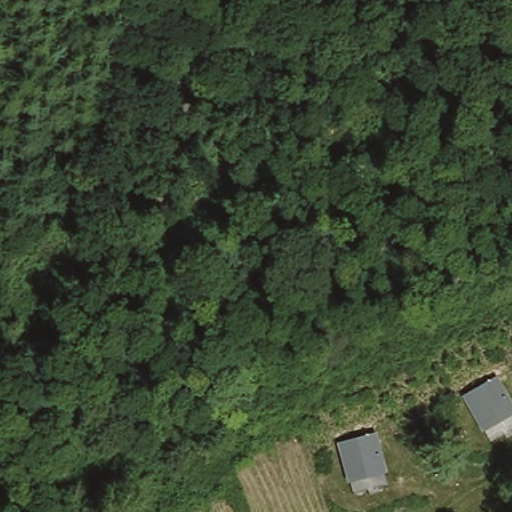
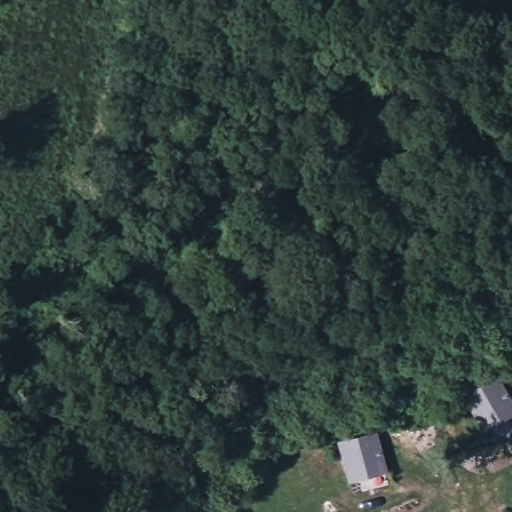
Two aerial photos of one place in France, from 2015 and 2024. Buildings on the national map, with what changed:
unchanged [(476,410),(468,393),(497,379),(505,396),(510,405),(512,410),(512,426),(489,437),(485,428),(482,422),(476,410)]
unchanged [(375,434),(387,476),(349,485),(337,443),(375,434)]

